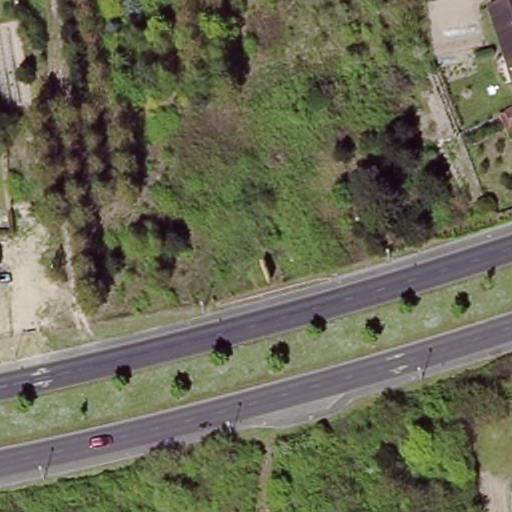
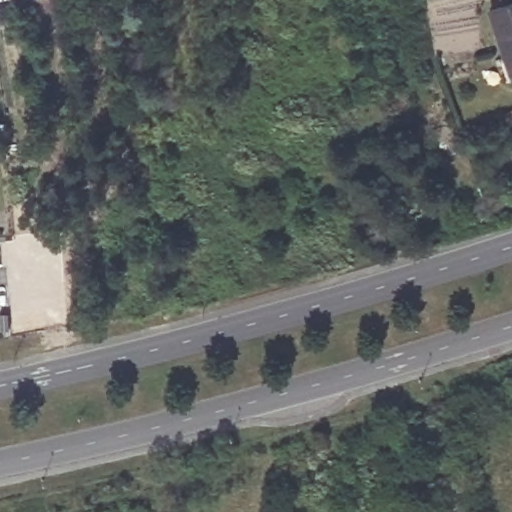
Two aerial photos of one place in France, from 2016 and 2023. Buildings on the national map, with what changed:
unchanged [(490,15),(512,6),(512,73),(510,74),(490,15)]
unchanged [(359,115),(370,111),(376,128),(365,132),(359,115)]
unchanged [(500,125),(512,119),(512,148),(510,149),(500,125)]

